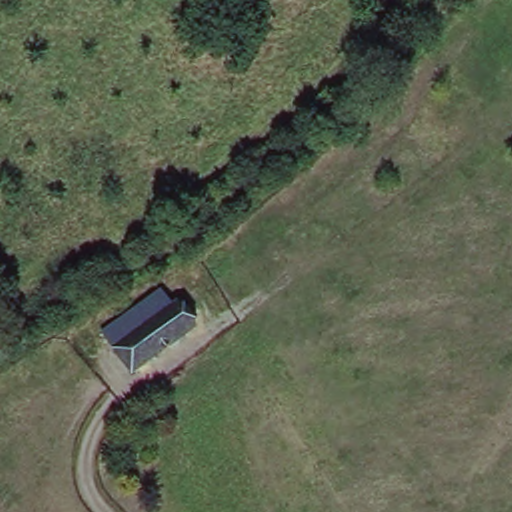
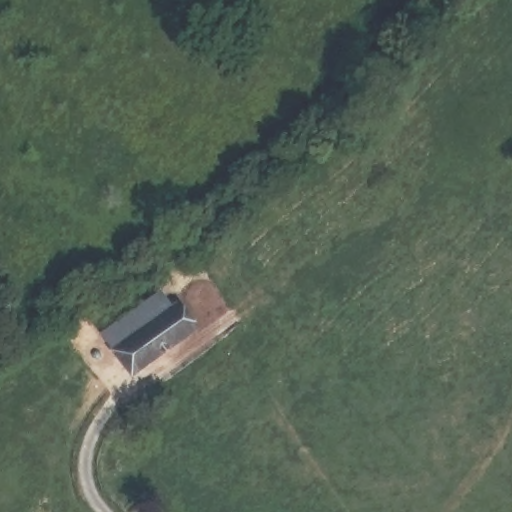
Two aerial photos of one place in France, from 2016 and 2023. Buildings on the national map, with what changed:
unchanged [(126,355),(114,363),(97,335),(159,295),(174,317),(126,355)]
unchanged [(202,332),(144,377),(126,355),(184,310),(202,332)]

